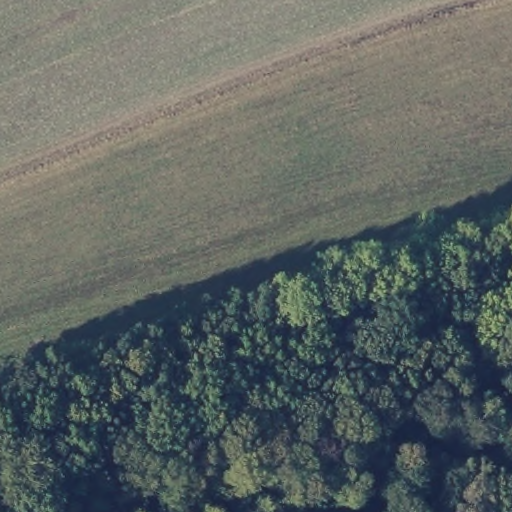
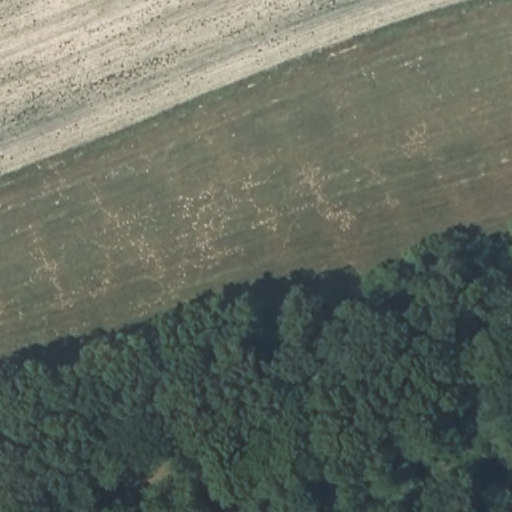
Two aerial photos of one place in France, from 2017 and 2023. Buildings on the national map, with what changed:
[]

